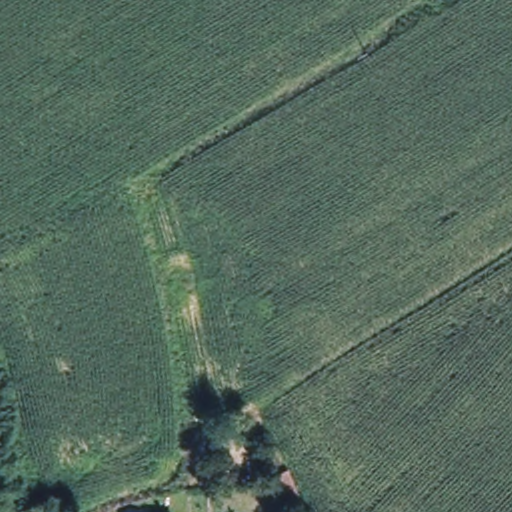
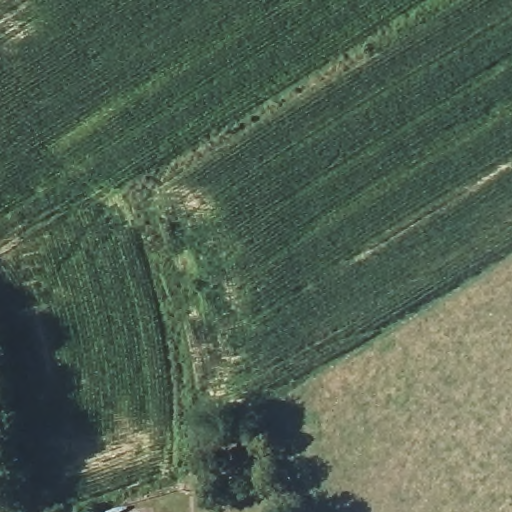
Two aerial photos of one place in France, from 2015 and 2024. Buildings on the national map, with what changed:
unchanged [(285,475),(292,470),(307,512),(306,512),(290,512),(280,477),(285,475)]
unchanged [(150,506),(150,512),(135,512),(135,506),(150,506)]

